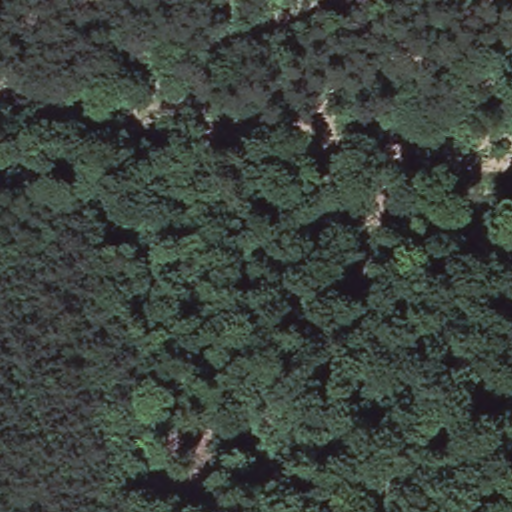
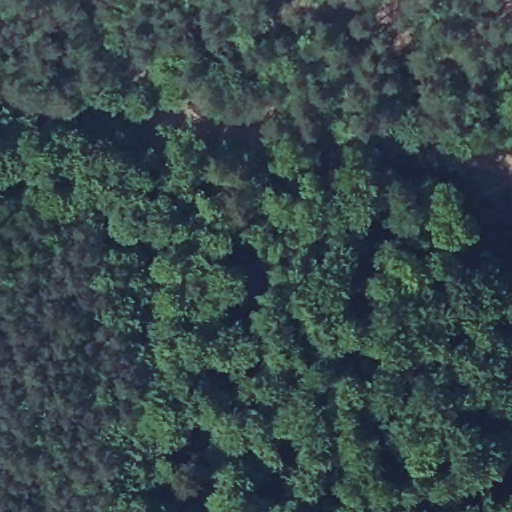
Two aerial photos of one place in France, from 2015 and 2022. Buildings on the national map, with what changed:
[]

